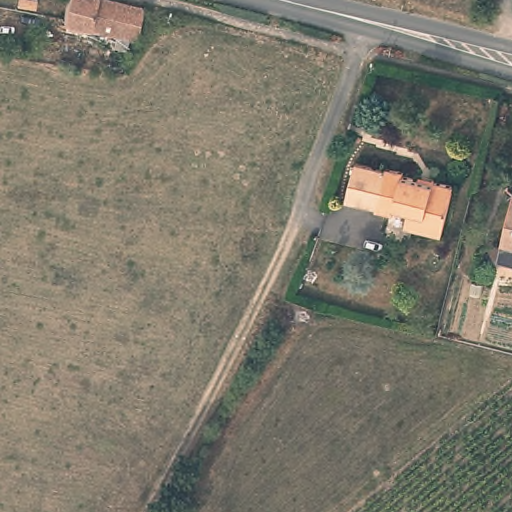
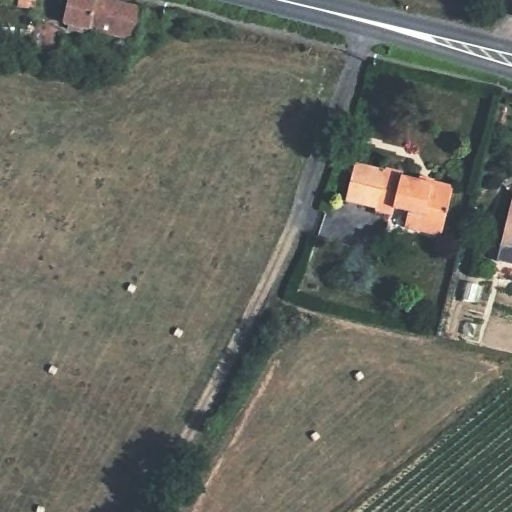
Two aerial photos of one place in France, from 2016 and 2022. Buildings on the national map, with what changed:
unchanged [(62,20),(68,0),(117,0),(143,7),(136,38),(62,20)]
unchanged [(356,161),(386,168),(377,205),(346,197),(350,181),(356,161)]
unchanged [(442,234),(405,225),(409,209),(396,206),(395,211),(376,207),(377,205),(386,168),(387,164),(404,167),(402,172),(420,176),(420,171),(433,175),(455,180),(442,234)]
unchanged [(496,247),(509,195),(512,195),(512,251),(496,247)]

